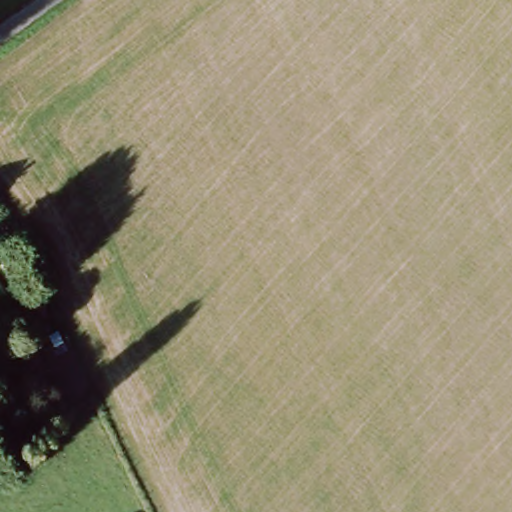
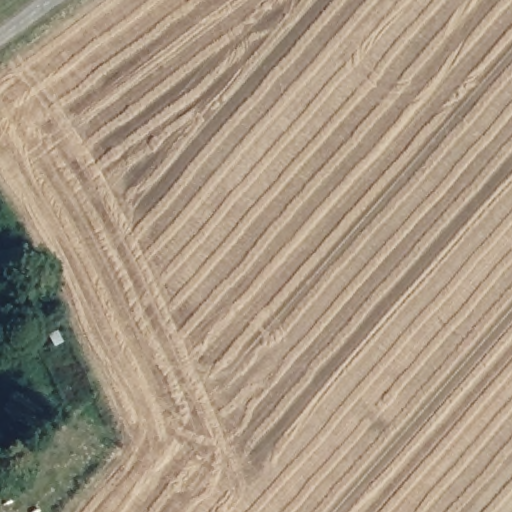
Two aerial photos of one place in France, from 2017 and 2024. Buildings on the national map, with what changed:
unchanged [(59,345),(51,350),(46,340),(54,335),(59,345)]

